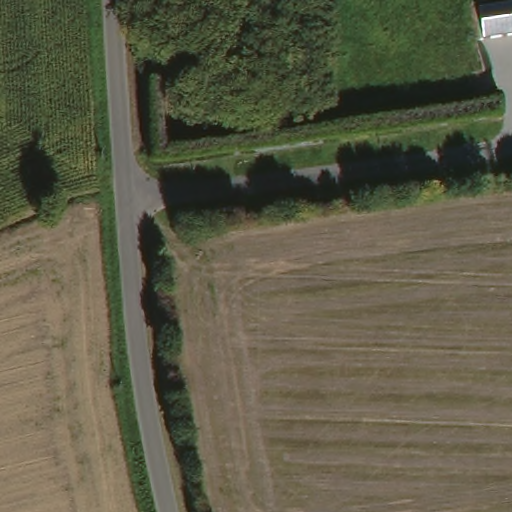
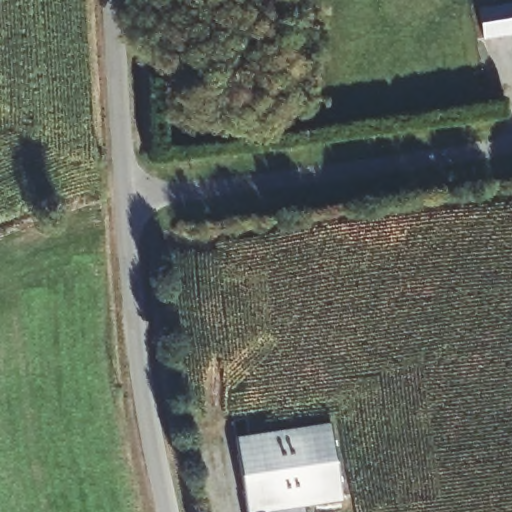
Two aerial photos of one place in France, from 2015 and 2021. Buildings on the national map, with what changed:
new [(479,9),(512,4),(512,36),(484,40),(479,9)]
new [(330,420),(341,494),(304,500),(305,512),(246,512),(235,433),(330,420)]

